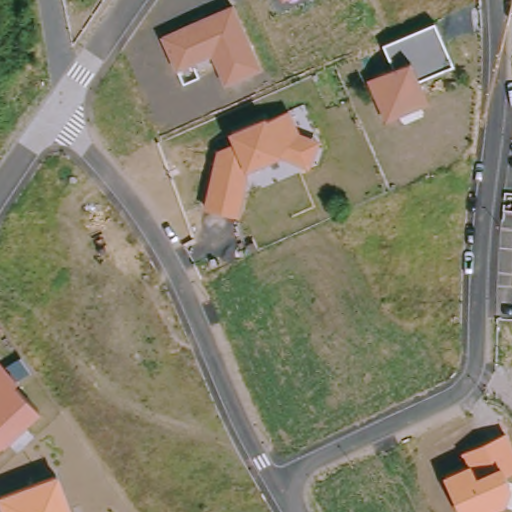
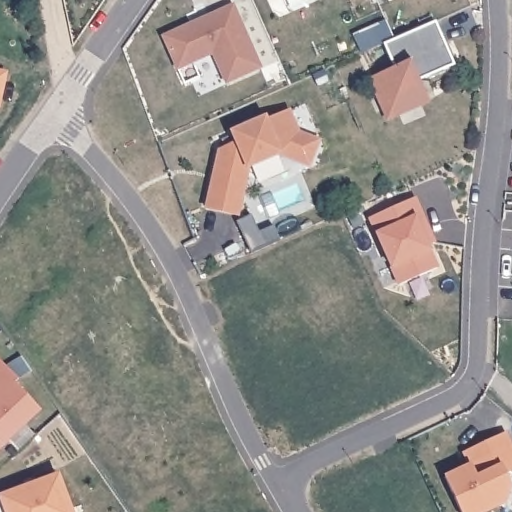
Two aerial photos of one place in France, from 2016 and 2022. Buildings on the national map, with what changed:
unchanged [(233,4),(261,67),(227,82),(214,55),(195,63),(201,78),(185,85),(177,70),(162,34),(233,4)]
unchanged [(432,108),(390,125),(372,85),(397,73),(386,48),(435,27),(455,68),(421,83),(432,108)]
new [(8,71),(1,109),(0,108),(0,69),(8,71)]
unchanged [(291,113),(303,137),(323,142),(313,170),(284,159),(251,173),(242,222),(206,214),(218,151),(233,142),(231,135),(267,120),(291,113)]
new [(428,243),(437,267),(400,283),(393,267),(377,234),(370,218),(417,198),(435,240),(428,243)]
unchanged [(20,384),(15,389),(42,417),(5,451),(0,456),(0,362),(20,384)]
unchanged [(463,451),(507,432),(512,441),(512,471),(503,476),(510,489),(504,505),(490,512),(460,512),(443,476),(470,463),(463,451)]
unchanged [(70,512),(0,512),(0,497),(57,475),(70,512)]

